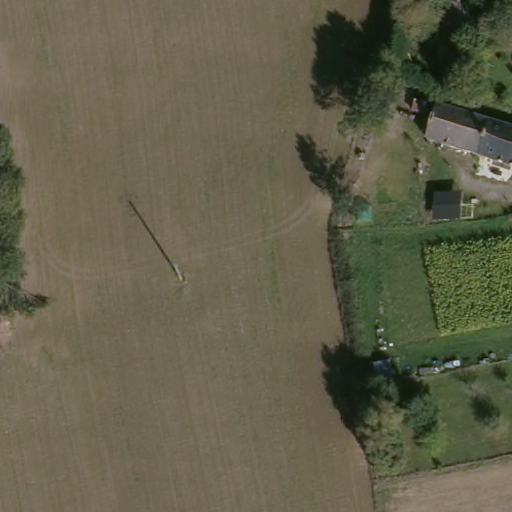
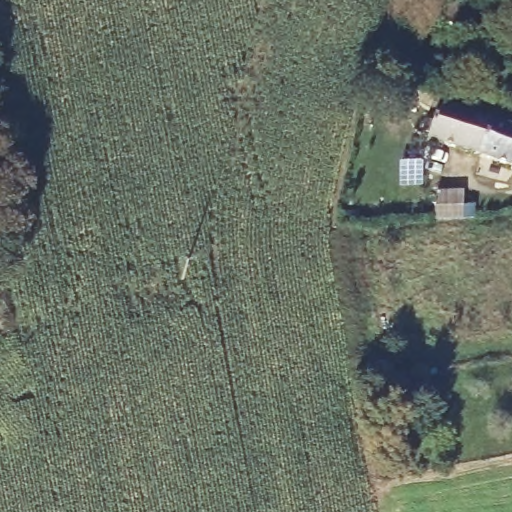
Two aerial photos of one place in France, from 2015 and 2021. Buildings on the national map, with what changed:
unchanged [(482,15),(476,35),(436,23),(443,1),(482,15)]
unchanged [(428,139),(438,103),(490,119),(478,155),(428,139)]
unchanged [(490,119),(512,126),(512,165),(478,155),(490,119)]

